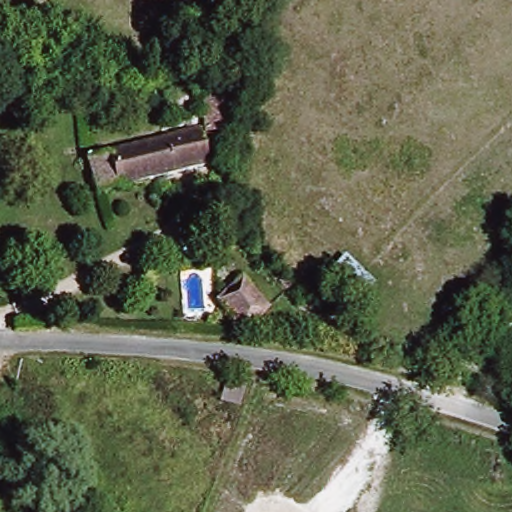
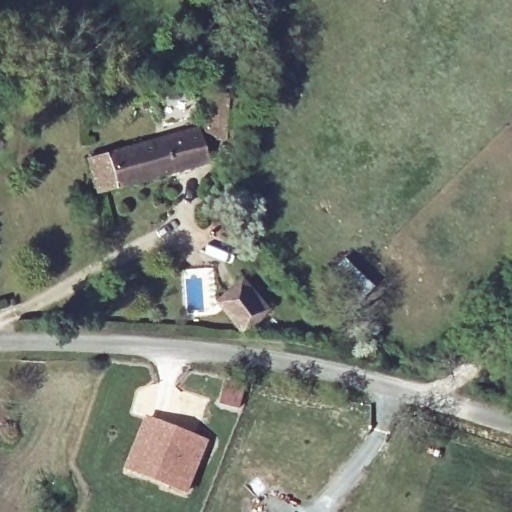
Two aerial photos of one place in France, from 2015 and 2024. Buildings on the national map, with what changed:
unchanged [(227,99),(228,137),(205,136),(204,99),(227,99)]
unchanged [(209,163),(101,190),(93,153),(201,127),(209,163)]
unchanged [(217,304),(224,299),(252,272),(282,304),(254,331),(237,313),(230,318),(217,304)]
new [(144,416),(210,440),(189,493),(125,468),(144,416)]

